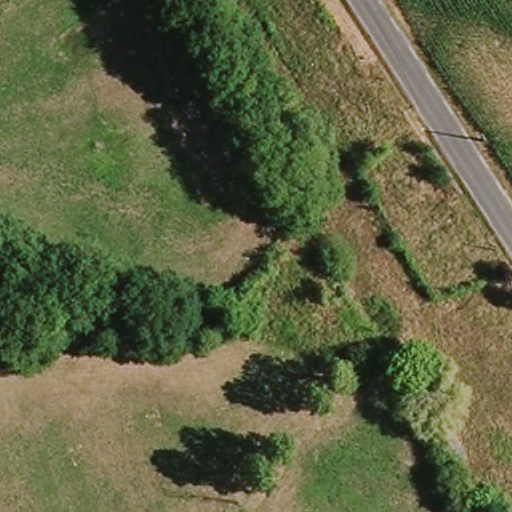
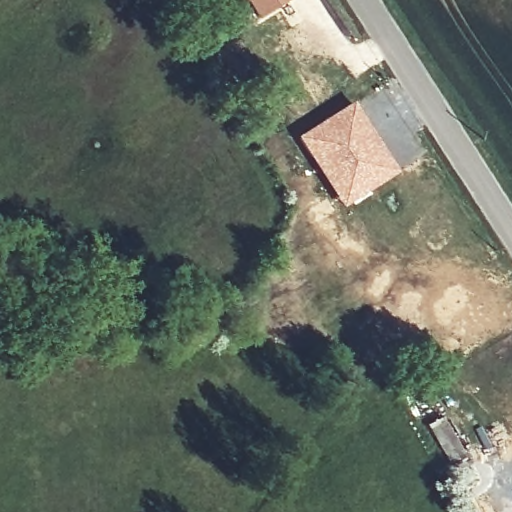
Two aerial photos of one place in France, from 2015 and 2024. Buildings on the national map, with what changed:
new [(245,0),(285,0),(257,18),(245,0)]
new [(355,99),(399,170),(343,207),(296,136),(355,99)]
unchanged [(465,453),(451,462),(430,429),(445,419),(465,453)]

